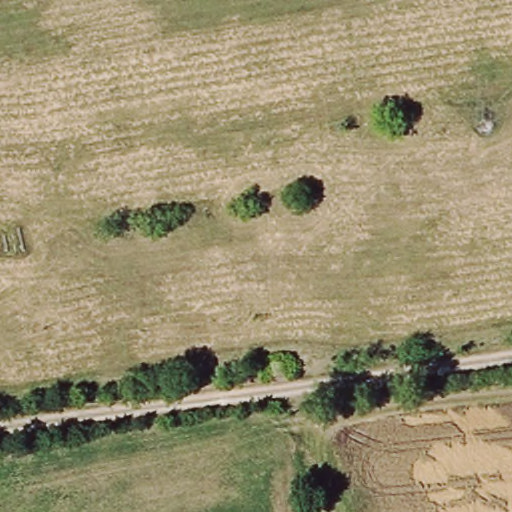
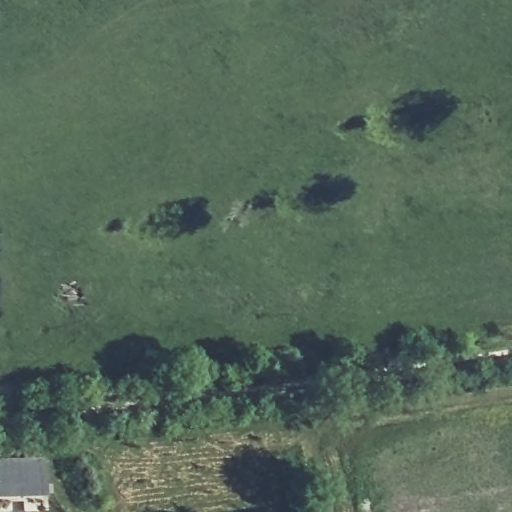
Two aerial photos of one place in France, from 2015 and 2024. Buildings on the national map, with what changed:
new [(40,462),(41,499),(0,500),(0,464),(40,462)]

